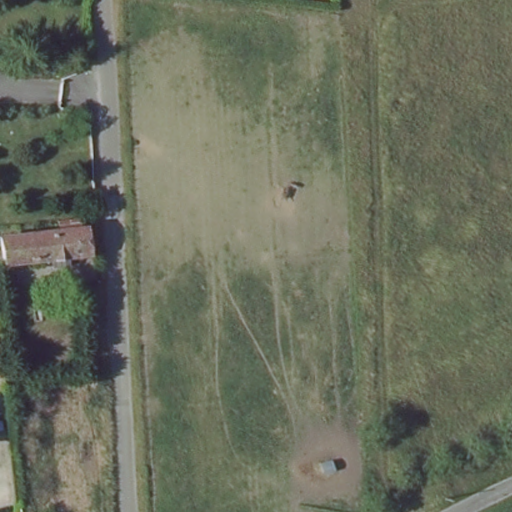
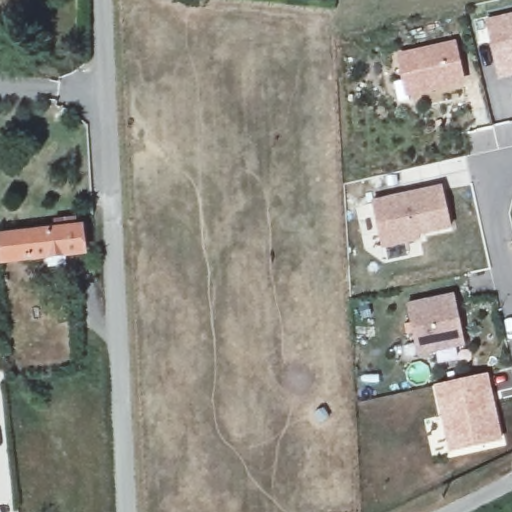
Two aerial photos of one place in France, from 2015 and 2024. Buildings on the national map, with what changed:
new [(512,76),(499,77),(497,70),(486,22),(512,16),(512,70),(511,70),(512,73),(512,76)]
new [(406,97),(396,55),(455,42),(463,85),(406,97)]
new [(383,250),(372,202),(441,186),(451,229),(418,236),(420,242),(383,250)]
unchanged [(68,227),(81,227),(83,254),(1,261),(0,251),(0,232),(48,229),(47,214),(67,214),(68,227)]
new [(407,305),(453,295),(464,347),(418,357),(407,305)]
new [(488,372),(503,440),(449,452),(432,384),(488,372)]

